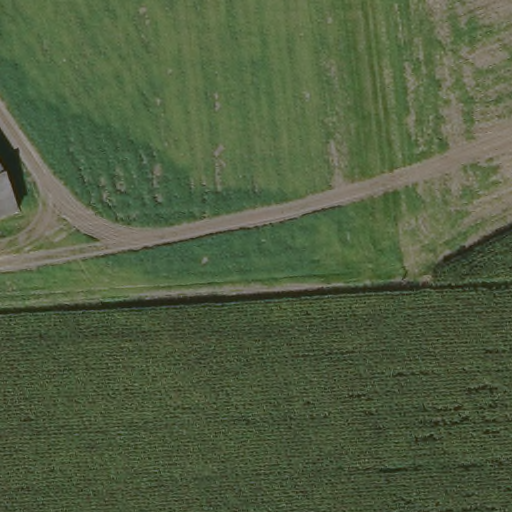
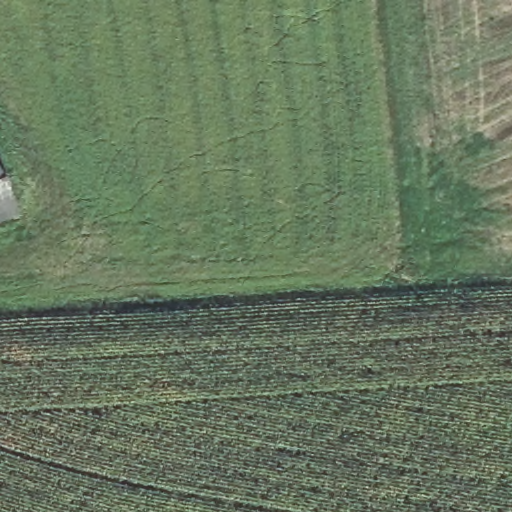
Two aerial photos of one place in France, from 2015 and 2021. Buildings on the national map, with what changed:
unchanged [(3,174),(13,211),(0,216),(0,175),(3,174)]

